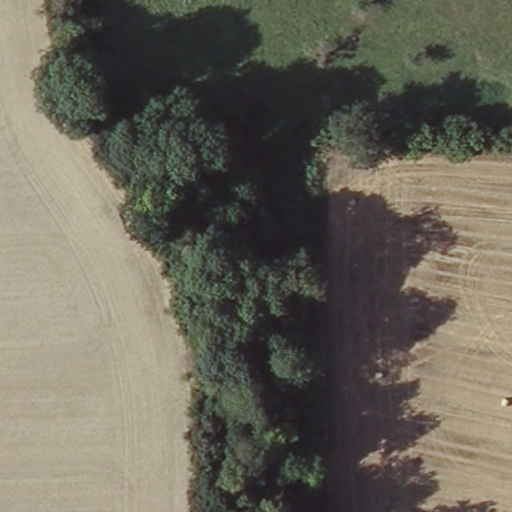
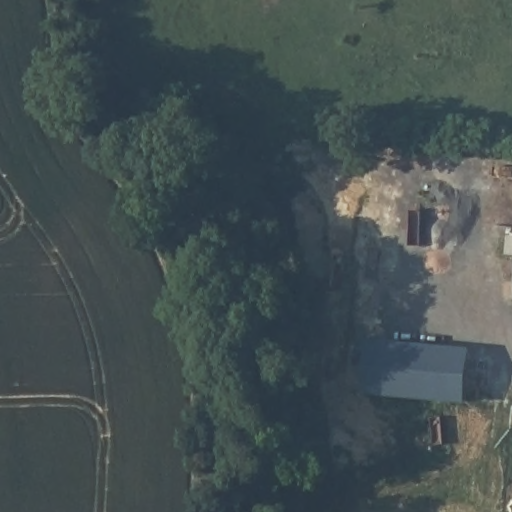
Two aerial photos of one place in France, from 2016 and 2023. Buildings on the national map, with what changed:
new [(471,404),(366,393),(371,339),(475,348),(471,404)]

